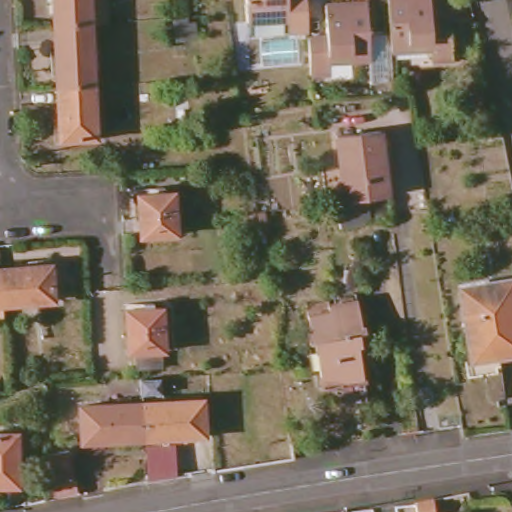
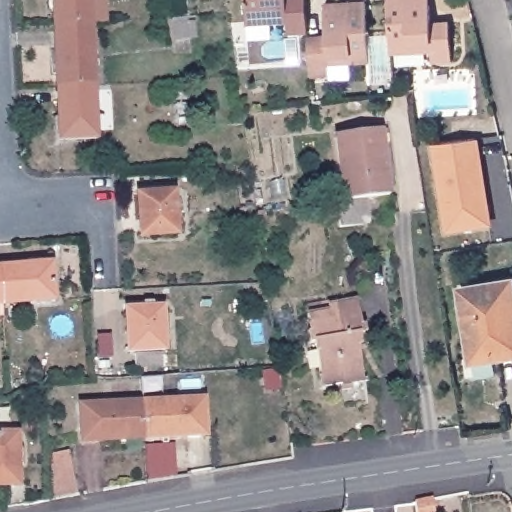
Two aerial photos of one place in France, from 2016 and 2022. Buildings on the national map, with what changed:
unchanged [(55,25),(53,0),(89,0),(91,23),(55,25)]
unchanged [(197,21),(198,38),(191,38),(176,39),(172,17),(174,17),(172,0),(178,0),(185,0),(187,16),(188,22),(197,21)]
unchanged [(287,29),(287,18),(247,20),(246,0),(305,0),(307,28),(287,29)]
unchanged [(327,33),(325,1),(339,0),(368,0),(372,55),(331,57),(332,68),(310,69),(308,40),(308,33),(327,33)]
unchanged [(454,57),(433,58),(433,49),(392,51),(388,0),(430,0),(432,21),(451,19),(451,26),(454,57)]
unchanged [(57,87),(55,25),(91,23),(93,85),(57,87)]
unchanged [(95,138),(60,139),(57,87),(93,85),(95,138)]
unchanged [(339,198),(346,197),(339,131),(383,126),(391,192),(369,194),(371,218),(357,220),(342,221),(339,198)]
new [(446,232),(432,145),(479,138),(493,225),(446,232)]
unchanged [(142,236),(140,193),(175,191),(178,234),(142,236)]
unchanged [(51,263),(54,299),(1,304),(0,292),(0,267),(51,263)]
unchanged [(474,359),(463,290),(512,282),(512,353),(501,355),(474,359)]
unchanged [(1,304),(0,304),(0,292),(1,304)]
unchanged [(365,380),(343,384),(343,382),(324,385),(317,343),(314,343),(309,305),(330,301),(331,307),(359,302),(364,334),(358,335),(360,345),(365,380)]
unchanged [(128,352),(126,310),(162,309),(164,351),(128,352)]
unchanged [(209,399),(210,436),(149,439),(147,402),(209,399)]
unchanged [(87,442),(85,405),(147,402),(149,439),(87,442)]
unchanged [(0,485),(0,433),(17,433),(18,485),(0,485)]
unchanged [(56,497),(54,483),(52,457),(75,453),(80,494),(56,497)]
unchanged [(416,512),(415,504),(415,501),(433,498),(434,512),(416,512)]

